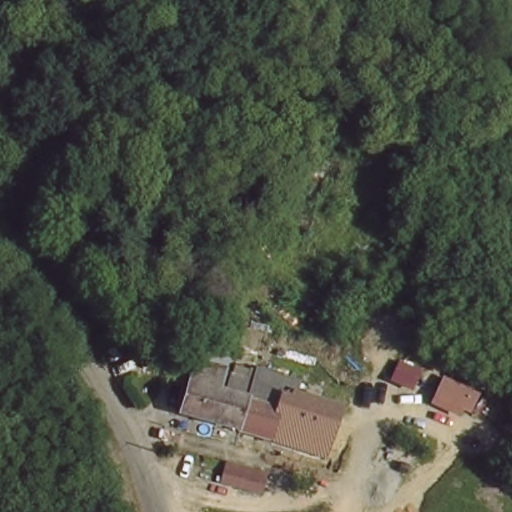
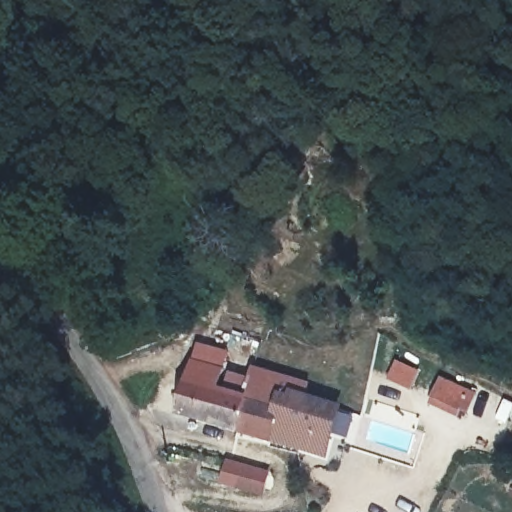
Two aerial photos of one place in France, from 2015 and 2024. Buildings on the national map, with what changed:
unchanged [(297,394),(319,401),(306,440),(301,439),(299,448),(179,415),(195,348),(301,378),(297,394)]
unchanged [(468,422),(428,407),(441,376),(479,392),(468,422)]
unchanged [(263,495),(220,483),(226,459),(269,471),(263,495)]

